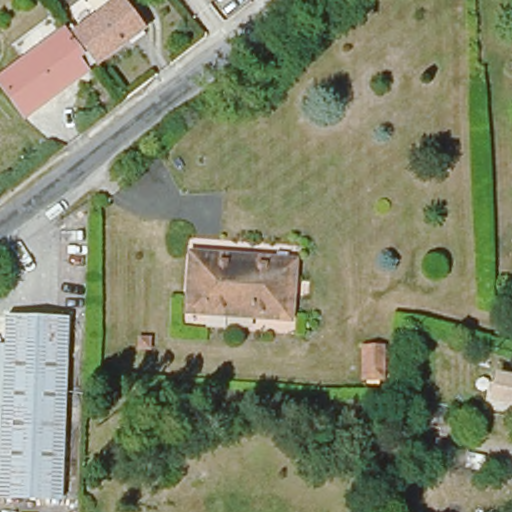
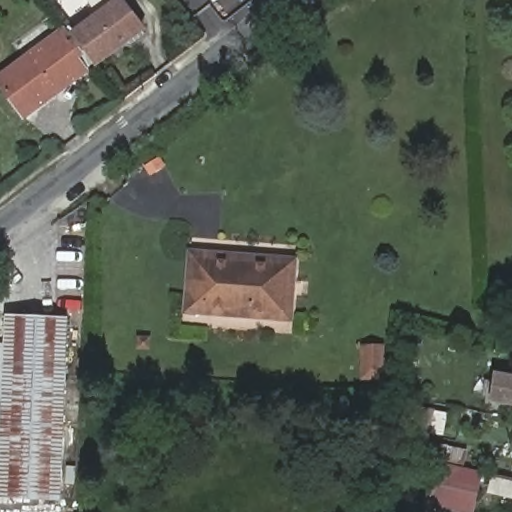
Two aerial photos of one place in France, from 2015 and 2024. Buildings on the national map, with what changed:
unchanged [(71,28),(75,34),(76,34),(121,1),(142,31),(97,64),(24,119),(0,87),(0,81),(71,28)]
unchanged [(288,319),(185,313),(188,255),(235,257),(252,258),(291,260),(288,319)]
unchanged [(7,344),(8,315),(67,318),(59,499),(0,495),(0,343),(7,344)]
unchanged [(149,347),(149,360),(135,359),(135,347),(149,347)]
unchanged [(380,356),(380,388),(361,388),(361,356),(380,356)]
new [(441,444),(468,450),(464,468),(483,472),(474,512),(449,512),(427,507),(441,444)]

